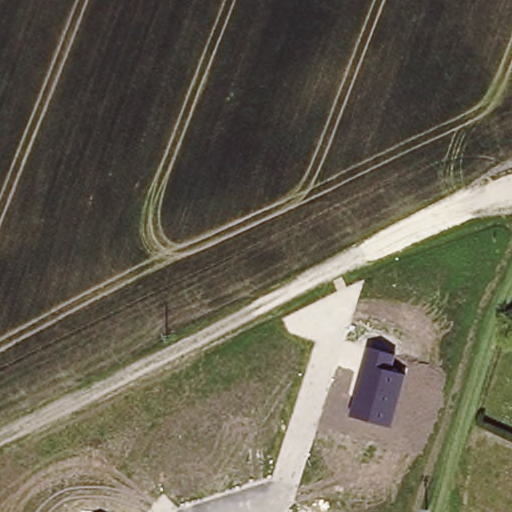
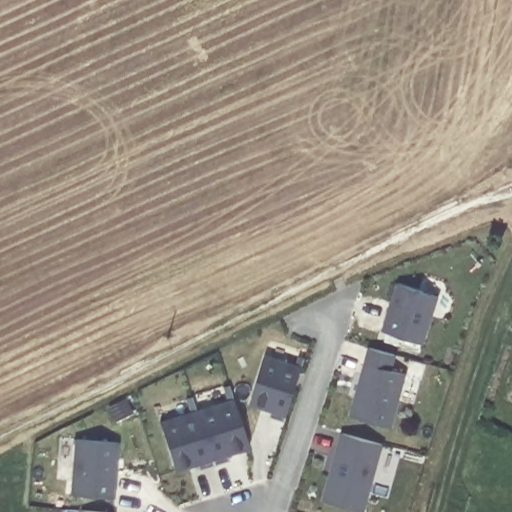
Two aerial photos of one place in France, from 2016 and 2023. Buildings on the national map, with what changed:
new [(381,331),(396,284),(439,295),(425,343),(381,331)]
unchanged [(368,349),(397,357),(393,370),(405,374),(392,427),(349,416),(368,349)]
new [(270,416),(271,412),(249,406),(265,355),(303,365),(285,421),(270,416)]
new [(227,456),(229,461),(197,470),(195,465),(175,472),(158,420),(233,399),(250,449),(227,456)]
new [(365,512),(322,502),(340,432),(383,445),(365,512)]
new [(70,495),(72,439),(117,443),(115,498),(70,495)]

